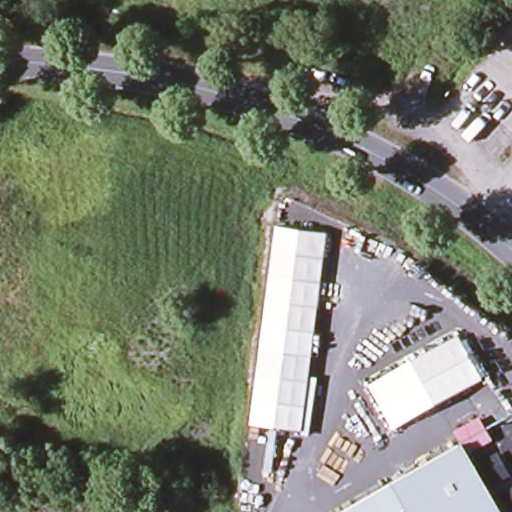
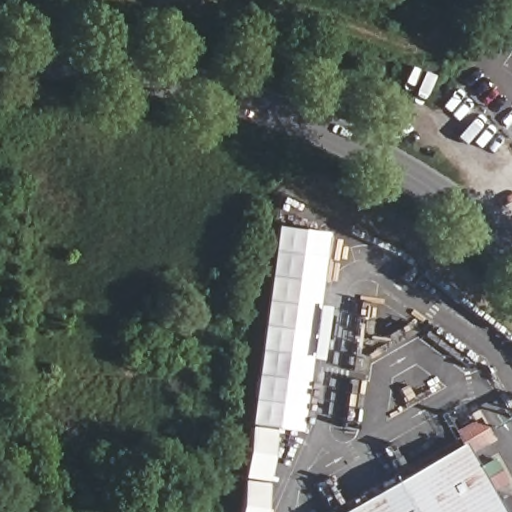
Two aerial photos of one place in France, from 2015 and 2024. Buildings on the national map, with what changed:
unchanged [(254,425),(279,226),(329,232),(304,430),(254,425)]
demolished [(487,381),(398,430),(372,385),(461,335),(487,381)]
unchanged [(496,512),(353,512),(461,450),(496,512)]

